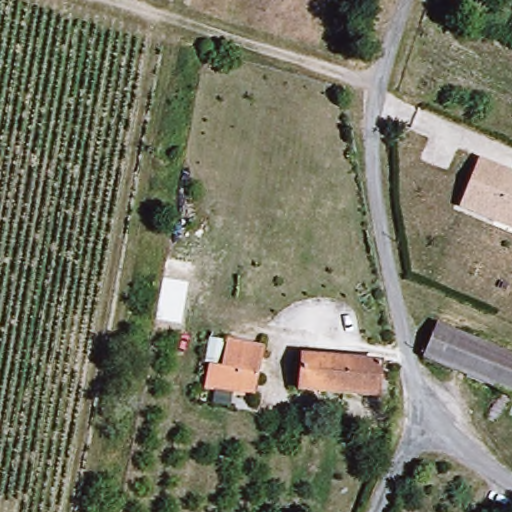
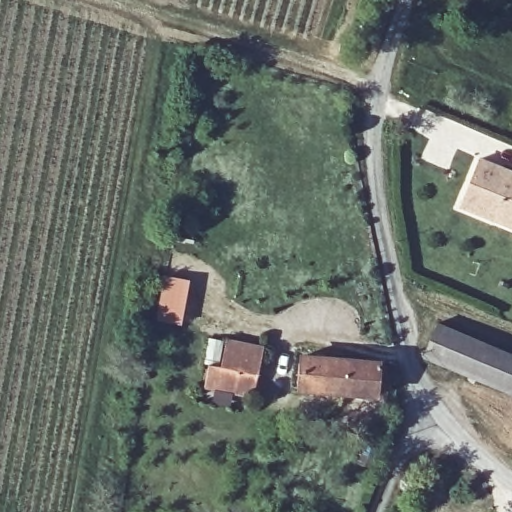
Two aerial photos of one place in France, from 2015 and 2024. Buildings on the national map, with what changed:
unchanged [(489,226),(456,213),(474,166),(512,180),(512,234),(489,226)]
new [(163,276),(189,281),(180,325),(154,319),(163,276)]
unchanged [(425,359),(440,328),(486,348),(512,360),(512,397),(425,359)]
unchanged [(224,342),(261,347),(254,391),(246,390),(244,396),(218,391),(205,389),(208,367),(219,368),(224,342)]
unchanged [(298,390),(301,358),(344,362),(342,394),(298,390)]
unchanged [(342,394),(344,362),(378,365),(375,398),(342,394)]

